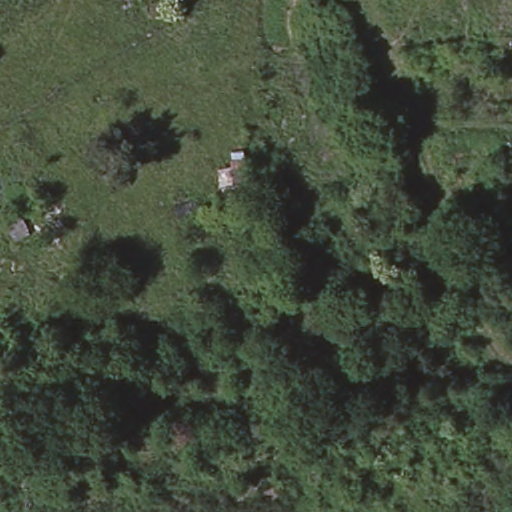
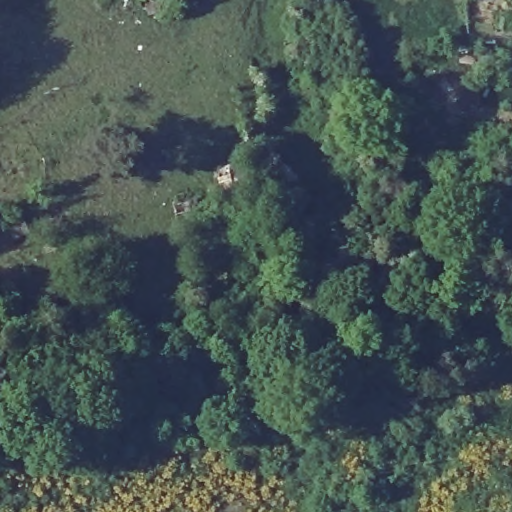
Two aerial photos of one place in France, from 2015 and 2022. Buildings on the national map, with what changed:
[]

